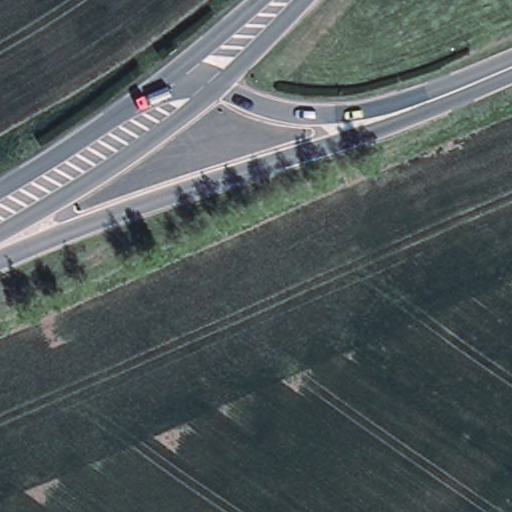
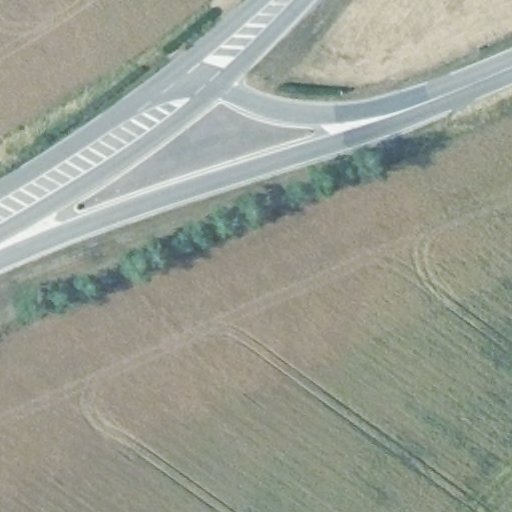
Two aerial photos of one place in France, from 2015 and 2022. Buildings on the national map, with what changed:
[]

